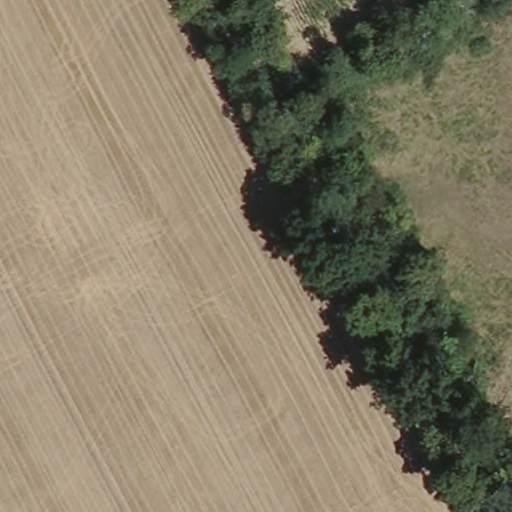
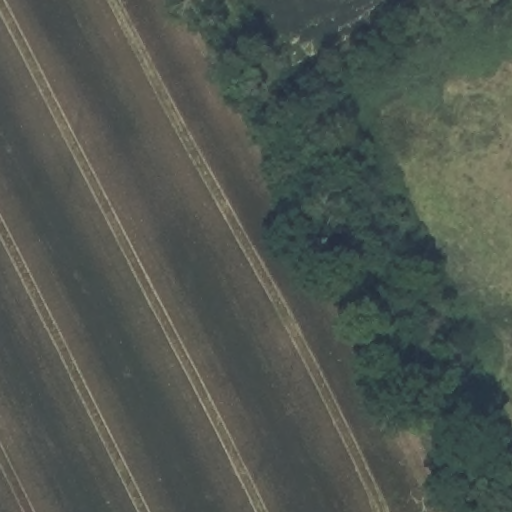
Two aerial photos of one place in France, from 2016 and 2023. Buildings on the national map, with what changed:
[]

